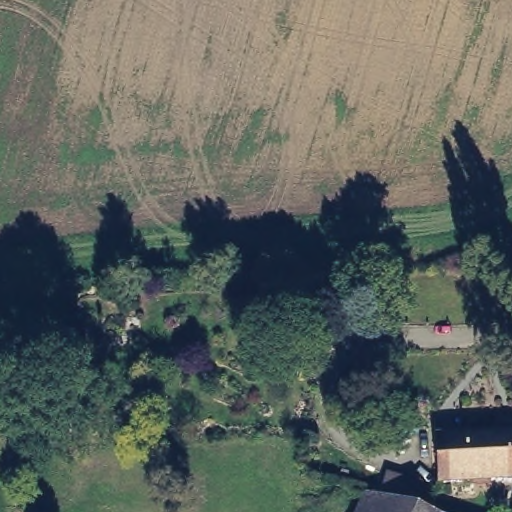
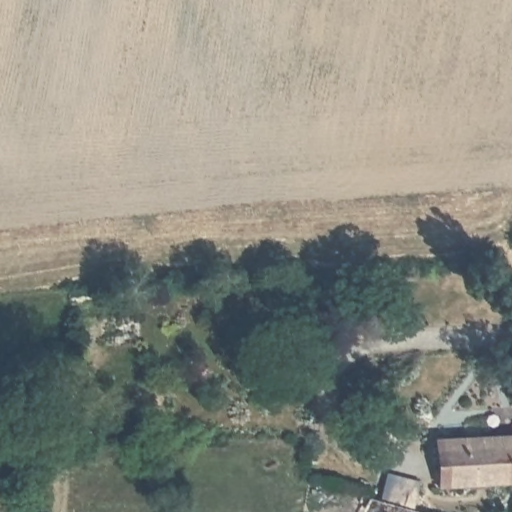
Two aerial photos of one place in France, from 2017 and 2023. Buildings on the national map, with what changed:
unchanged [(512,479),(442,482),(440,439),(512,434),(512,479)]
unchanged [(373,504),(398,512),(369,512),(373,504)]

